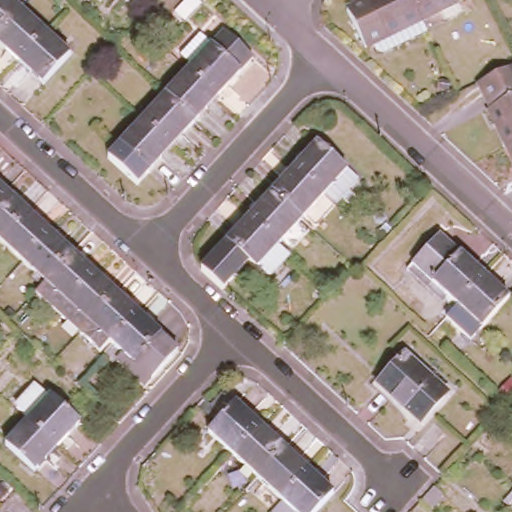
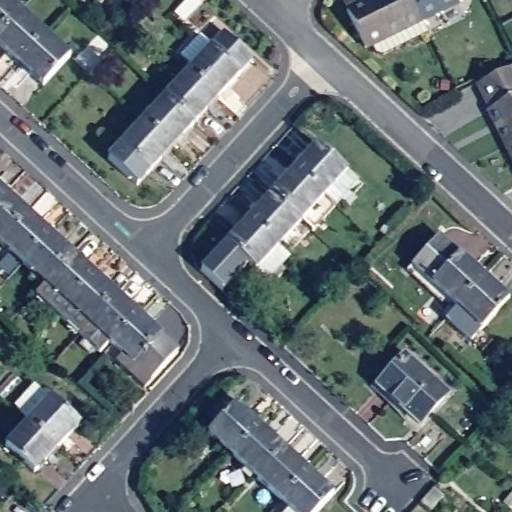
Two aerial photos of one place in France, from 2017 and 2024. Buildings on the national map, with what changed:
unchanged [(0,28),(0,0),(9,0),(18,8),(0,28)]
unchanged [(421,19),(366,48),(347,11),(369,0),(410,0),(421,19)]
unchanged [(457,0),(462,12),(444,21),(439,10),(421,19),(410,0),(458,0),(457,0)]
unchanged [(7,48),(0,42),(0,28),(18,8),(43,31),(16,61),(4,50),(7,48)]
unchanged [(65,52),(40,79),(28,69),(26,70),(16,61),(43,31),(65,52)]
unchanged [(211,45),(223,31),(251,56),(226,85),(228,88),(219,97),(189,69),(191,66),(180,55),(183,52),(199,34),(211,45)]
unchanged [(490,104),(492,103),(479,79),(512,62),(512,139),(508,141),(490,104)]
unchanged [(209,107),(208,106),(196,120),(166,93),(189,69),(219,97),(209,107)]
unchanged [(182,135),(183,136),(174,146),(143,118),(166,93),(196,120),(182,135)]
unchanged [(163,158),(161,156),(150,169),(121,142),(143,118),(174,146),(163,158)]
unchanged [(508,141),(512,139),(512,150),(508,141)]
unchanged [(304,151),(307,153),(317,141),(358,177),(336,202),(293,163),(304,151)]
unchanged [(313,226),(273,190),(286,176),(283,174),(293,163),(336,202),(313,226)]
unchanged [(0,199),(0,187),(6,192),(0,199)]
unchanged [(298,243),(287,233),(279,242),(248,213),(258,202),(260,204),(273,190),(313,226),(298,243)]
unchanged [(0,199),(6,192),(17,203),(15,204),(28,215),(1,242),(0,241),(0,199)]
unchanged [(256,267),(226,240),(238,227),(236,226),(248,213),(279,242),(256,267)]
unchanged [(1,242),(28,215),(38,224),(39,223),(51,234),(24,263),(1,242)]
unchanged [(453,297),(433,279),(428,274),(413,262),(439,233),(455,245),(469,258),(471,256),(482,266),(493,276),(491,279),(504,291),(478,320),(467,332),(442,309),(453,297)]
unchanged [(24,263),(51,234),(62,244),(61,245),(73,256),(46,284),(24,263)]
unchanged [(37,294),(46,284),(73,256),(83,266),(84,265),(96,275),(59,315),(37,294)]
unchanged [(106,284),(105,286),(116,297),(81,335),(59,315),(96,275),(106,284)]
unchanged [(110,342),(100,353),(81,335),(116,297),(126,306),(128,305),(139,315),(113,344),(110,342)]
unchanged [(150,325),(148,328),(177,354),(144,390),(114,363),(123,355),(113,344),(139,315),(150,325)]
unchanged [(448,391),(421,421),(380,382),(406,353),(448,391)]
unchanged [(221,416),(206,404),(221,389),(234,401),(249,414),(251,413),(261,421),(233,452),(208,430),(221,416)]
unchanged [(52,393),(80,419),(67,433),(69,435),(59,445),(29,418),(52,393)]
unchanged [(50,455),(48,454),(35,469),(6,442),(29,418),(59,445),(50,455)]
unchanged [(233,452),(261,421),(271,430),(269,432),(284,446),(258,475),(233,452)]
unchanged [(258,475),(284,446),(296,458),(299,457),(311,467),(283,498),(258,475)]
unchanged [(320,479),(334,491),(314,512),(273,512),(271,510),(283,498),(311,467),(321,477),(320,479)]
unchanged [(512,491),(512,498),(509,495),(512,491)]

